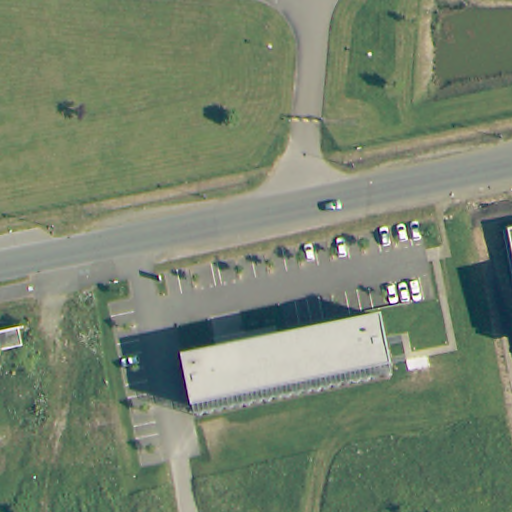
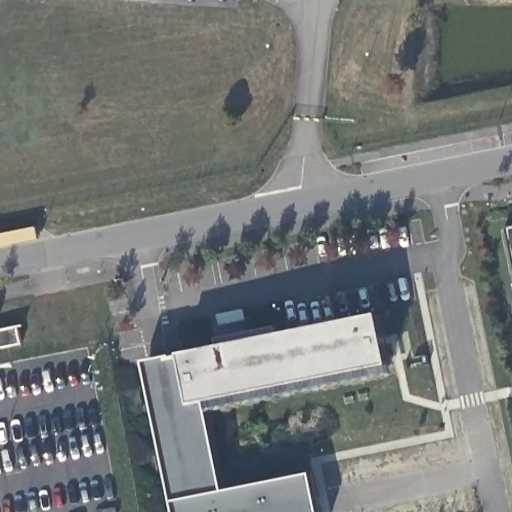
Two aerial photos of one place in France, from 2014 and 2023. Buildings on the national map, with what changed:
unchanged [(512,228),(512,261),(505,230),(512,228)]
unchanged [(390,364),(191,403),(181,353),(216,346),(215,336),(275,325),(276,334),(380,314),(390,364)]
unchanged [(17,326),(21,344),(0,348),(0,330),(17,326)]
new [(321,512),(173,512),(142,360),(181,353),(191,403),(205,400),(225,492),(312,475),(321,512)]

